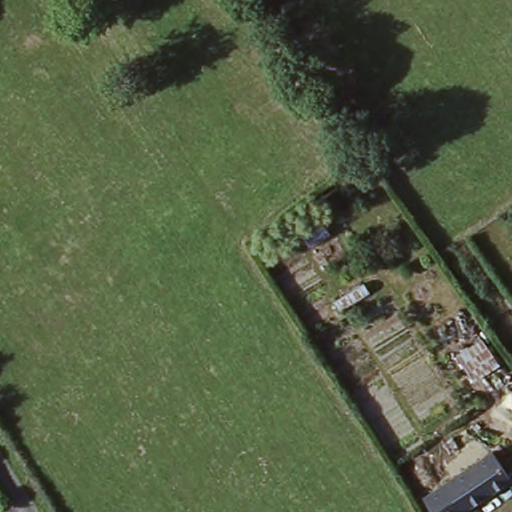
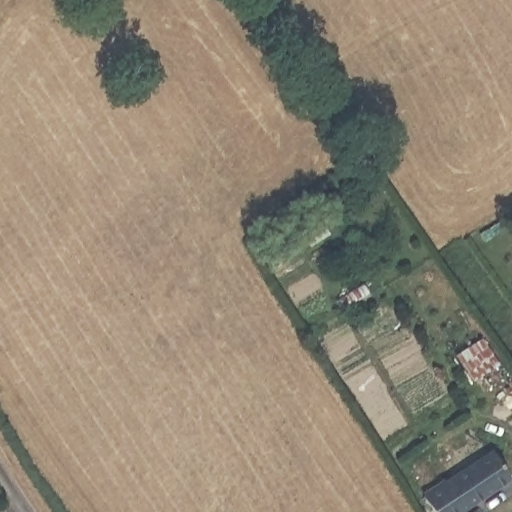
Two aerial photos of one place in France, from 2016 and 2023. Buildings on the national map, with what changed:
unchanged [(430,512),(419,494),(485,451),(503,477),(450,512),(430,512)]

